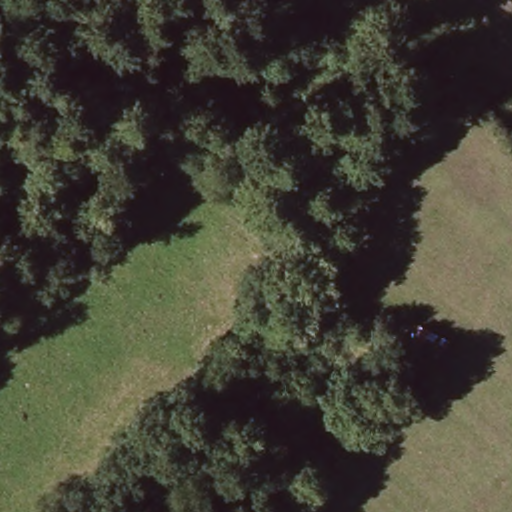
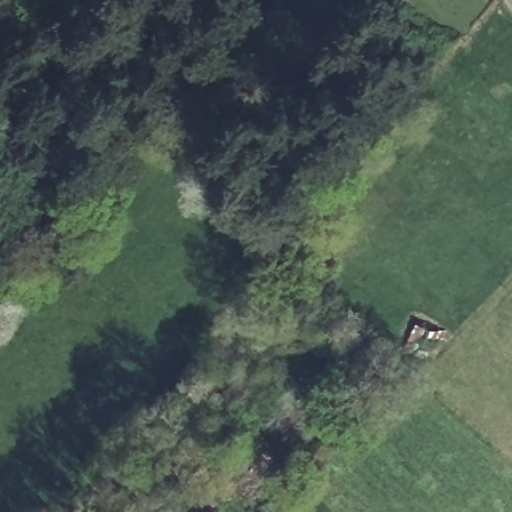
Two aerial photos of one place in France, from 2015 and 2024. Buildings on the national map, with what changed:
[]

